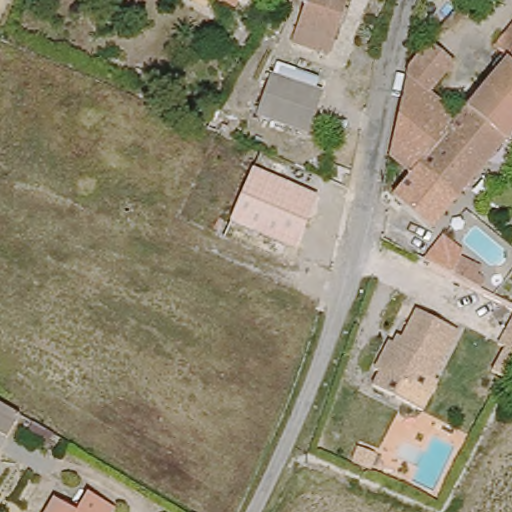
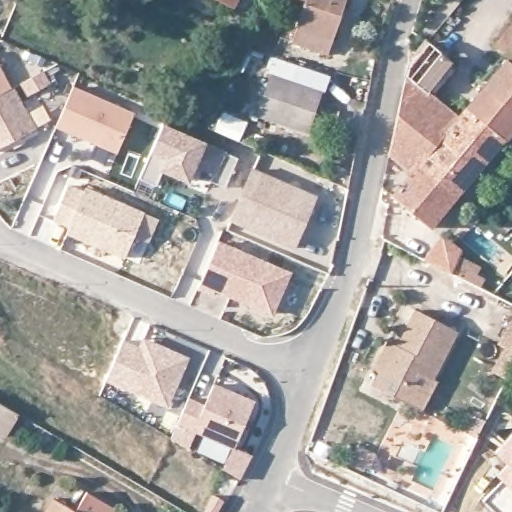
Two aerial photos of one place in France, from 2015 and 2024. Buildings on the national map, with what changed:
unchanged [(215,0),(238,0),(233,10),(215,0)]
unchanged [(298,47),(306,8),(291,5),(282,1),(282,0),(344,0),(329,57),(298,47)]
unchanged [(455,0),(458,0),(457,1),(455,0)]
unchanged [(512,30),(512,58),(508,63),(495,51),(512,30)]
unchanged [(415,177),(393,158),(409,69),(431,44),(454,65),(429,95),(460,120),(415,177)]
unchanged [(488,91),(484,90),(508,63),(512,58),(512,113),(488,91)]
new [(0,64),(36,129),(0,148),(0,64)]
unchanged [(259,112),(273,77),(323,95),(308,134),(259,112)]
new [(73,84),(135,111),(117,152),(55,125),(73,84)]
unchanged [(468,111),(484,90),(488,91),(512,113),(512,136),(506,143),(467,112),(468,111)]
new [(219,109),(231,113),(233,107),(249,113),(238,142),(211,131),(219,109)]
unchanged [(398,198),(415,177),(460,120),(467,112),(506,143),(434,229),(419,216),(412,210),(398,198)]
new [(161,127),(236,159),(224,189),(210,183),(209,182),(213,173),(193,165),(186,181),(162,171),(154,187),(137,179),(161,127)]
unchanged [(229,218),(249,167),(314,196),(293,247),(229,218)]
new [(69,180),(93,189),(144,212),(126,257),(125,259),(64,234),(66,229),(52,223),(69,180)]
new [(482,269),(479,274),(486,279),(482,289),(424,258),(442,234),(464,251),(462,255),(482,269)]
new [(219,240),(292,271),(271,318),(218,293),(225,277),(219,274),(213,289),(200,284),(219,240)]
unchanged [(459,328),(436,379),(421,372),(408,402),(376,387),(381,373),(377,370),(389,342),(393,344),(397,336),(403,338),(416,309),(459,328)]
unchanged [(494,372),(509,347),(498,342),(512,319),(512,381),(494,372)]
new [(126,335),(128,336),(141,342),(143,337),(190,357),(167,409),(104,381),(126,335)]
new [(211,406),(213,400),(206,397),(213,382),(256,399),(236,446),(193,428),(186,444),(171,435),(177,421),(188,396),(211,406)]
unchanged [(0,443),(0,413),(13,422),(0,443)]
new [(512,433),(512,490),(499,478),(489,468),(512,433)]
unchanged [(390,457),(383,472),(358,459),(365,444),(390,457)]
new [(253,453),(240,476),(223,466),(236,446),(253,453)]
new [(499,478),(512,490),(512,512),(495,512),(482,500),(499,478)]
unchanged [(51,498),(71,508),(81,492),(108,508),(106,512),(43,512),(51,498)]

